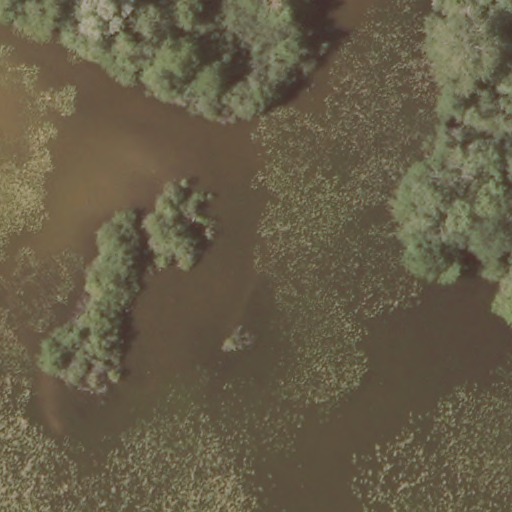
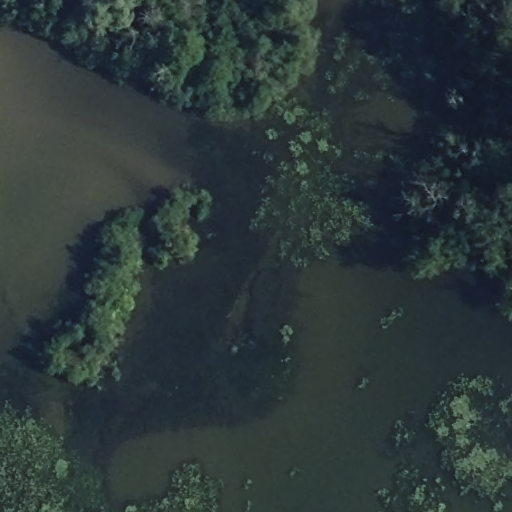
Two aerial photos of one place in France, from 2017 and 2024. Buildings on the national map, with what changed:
[]

